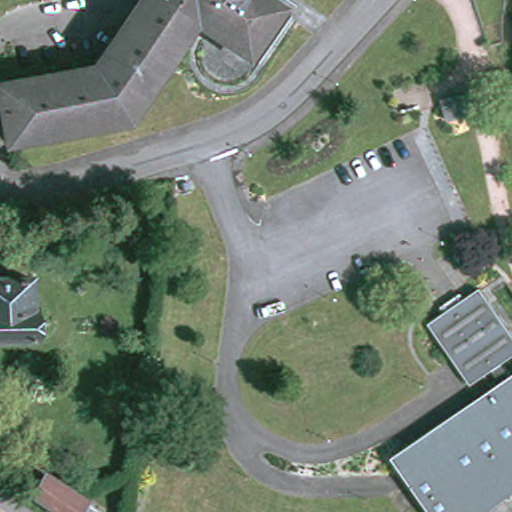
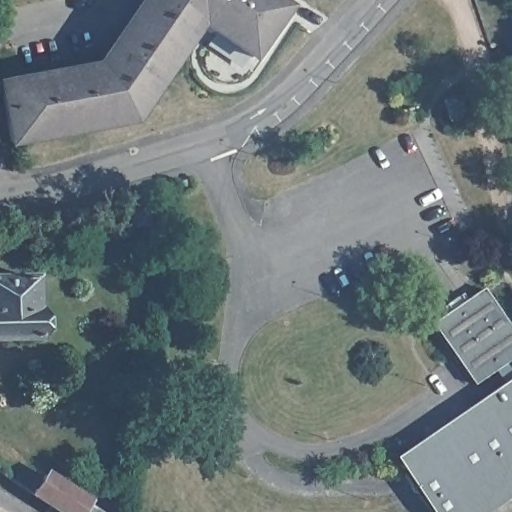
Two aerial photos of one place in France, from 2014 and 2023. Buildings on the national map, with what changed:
unchanged [(250,59),(196,21),(129,120),(10,142),(0,91),(0,88),(97,70),(108,53),(114,57),(153,0),(270,0),(284,9),(250,59)]
unchanged [(448,121),(443,100),(461,96),(467,116),(448,121)]
unchanged [(37,278),(37,311),(39,311),(40,338),(0,339),(0,279),(37,278)]
unchanged [(501,363),(511,377),(512,377),(512,495),(487,512),(430,512),(394,458),(502,384),(492,370),(472,384),(431,324),(481,289),(512,335),(512,355),(501,363)]
unchanged [(81,497),(98,508),(95,512),(71,512),(62,512),(27,489),(39,470),(81,497)]

